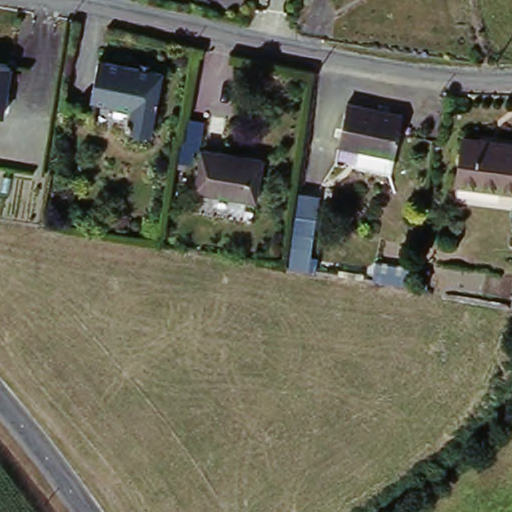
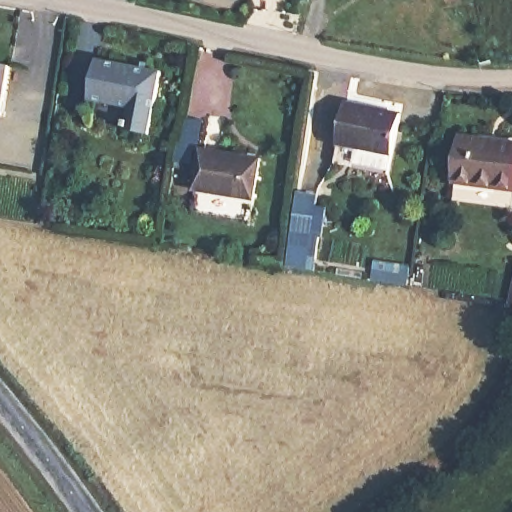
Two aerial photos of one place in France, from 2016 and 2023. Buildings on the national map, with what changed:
unchanged [(162,70),(150,132),(127,128),(127,125),(125,124),(126,118),(128,118),(131,105),(90,98),(98,58),(162,70)]
unchanged [(9,69),(3,118),(0,117),(0,67),(9,69)]
unchanged [(401,110),(389,168),(337,158),(347,100),(401,110)]
unchanged [(512,200),(459,193),(467,133),(512,139),(512,200)]
unchanged [(259,161),(257,198),(196,192),(201,152),(259,161)]
unchanged [(298,191),(320,195),(310,272),(287,267),(298,191)]
unchanged [(373,282),(373,276),(384,276),(386,273),(410,275),(408,288),(373,282)]

